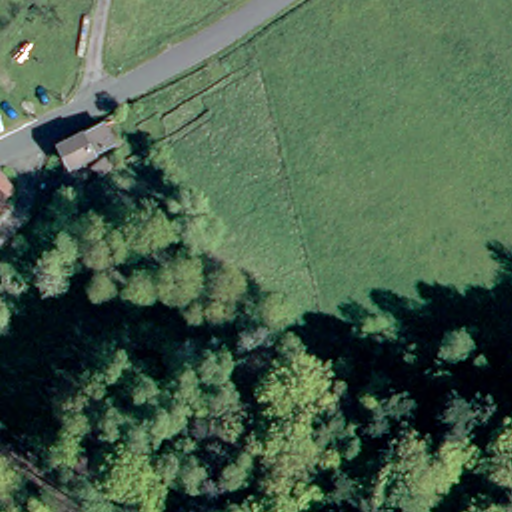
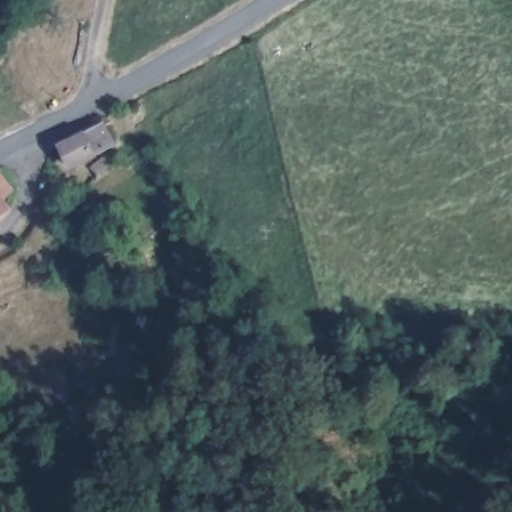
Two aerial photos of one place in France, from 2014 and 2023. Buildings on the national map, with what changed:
unchanged [(115,148),(67,171),(58,149),(104,126),(115,148)]
unchanged [(20,195),(8,203),(15,213),(0,223),(0,178),(5,175),(20,195)]

